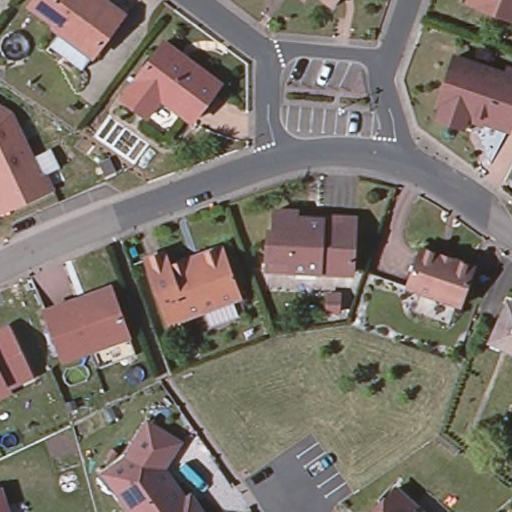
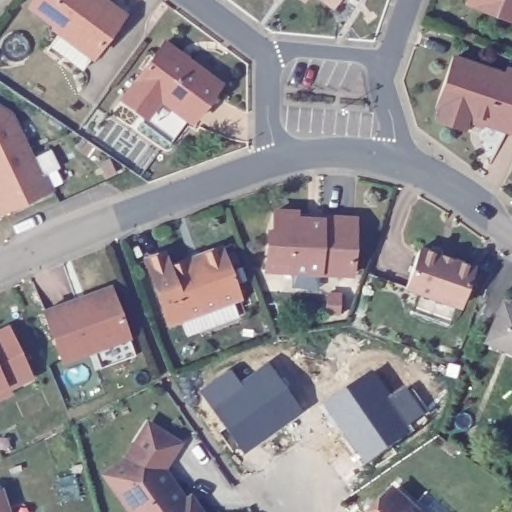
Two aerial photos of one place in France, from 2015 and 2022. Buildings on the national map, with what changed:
unchanged [(50,45),(60,32),(53,28),(56,25),(30,5),(33,0),(105,0),(123,13),(118,20),(91,56),(81,69),(50,45)]
unchanged [(301,4),(296,0),(304,0),(301,4)]
unchanged [(330,11),(315,0),(338,0),(338,1),(330,11)]
unchanged [(512,16),(469,0),(512,0),(512,16)]
unchanged [(137,112),(118,99),(161,42),(217,85),(190,122),(158,99),(144,117),(137,112)]
unchanged [(512,68),(512,118),(507,132),(467,117),(463,129),(438,121),(442,108),(437,107),(455,59),(505,77),(510,67),(512,68)]
unchanged [(12,111),(30,149),(12,156),(9,149),(0,153),(0,104),(12,111)]
unchanged [(9,149),(12,156),(30,149),(41,174),(46,172),(55,189),(1,213),(0,210),(0,153),(9,149)]
unchanged [(262,259),(264,231),(271,231),(272,209),(289,211),(298,224),(303,219),(350,222),(346,275),(285,271),(261,270),(262,259)]
unchanged [(470,264),(455,304),(401,286),(415,245),(470,264)]
unchanged [(162,252),(168,267),(220,247),(237,297),(168,322),(145,259),(162,252)]
unchanged [(62,359),(44,309),(77,297),(111,285),(113,290),(129,336),(62,359)]
unchanged [(338,296),(337,316),(325,315),(326,295),(338,296)]
unchanged [(512,355),(486,345),(503,307),(512,311),(512,355)]
unchanged [(35,382),(8,393),(6,388),(0,391),(0,337),(13,332),(35,382)]
new [(231,368),(243,387),(271,367),(302,411),(244,452),(201,392),(231,368)]
new [(372,371),(388,399),(407,387),(425,415),(407,427),(412,435),(365,466),(324,403),(372,371)]
unchanged [(125,462),(148,427),(178,446),(162,470),(185,503),(190,500),(195,507),(198,512),(131,512),(105,476),(125,462)]
unchanged [(422,512),(371,512),(394,487),(422,512)]
unchanged [(0,512),(0,495),(5,512),(0,512)]

